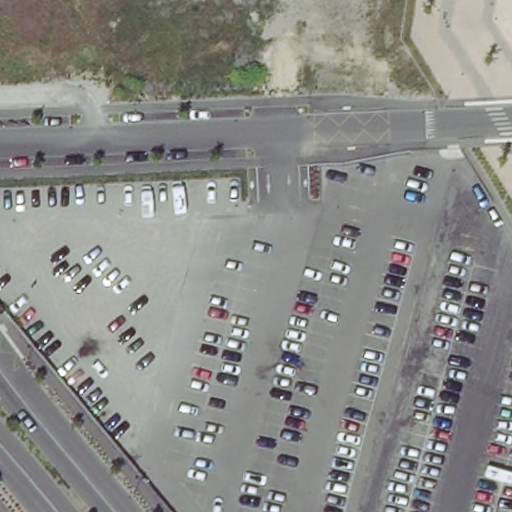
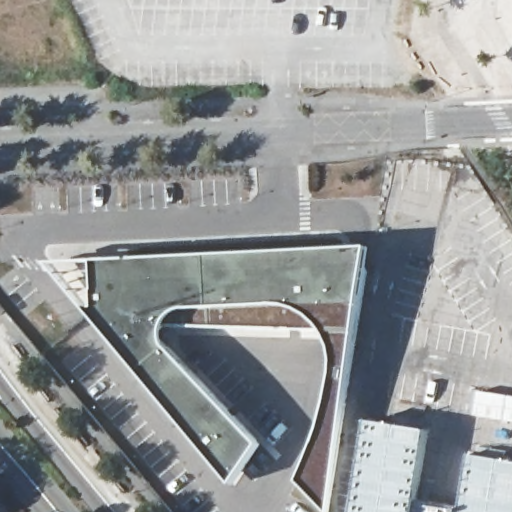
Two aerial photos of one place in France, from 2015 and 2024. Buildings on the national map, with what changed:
new [(324,512),(316,512),(289,489),(307,445),(320,409),(323,384),(322,365),(315,349),(155,349),(156,362),(161,370),(249,464),(222,500),(81,328),(46,281),(362,269),(324,512)]
new [(416,503),(461,510),(469,456),(512,463),(512,512),(354,512),(368,420),(427,431),(416,503)]

